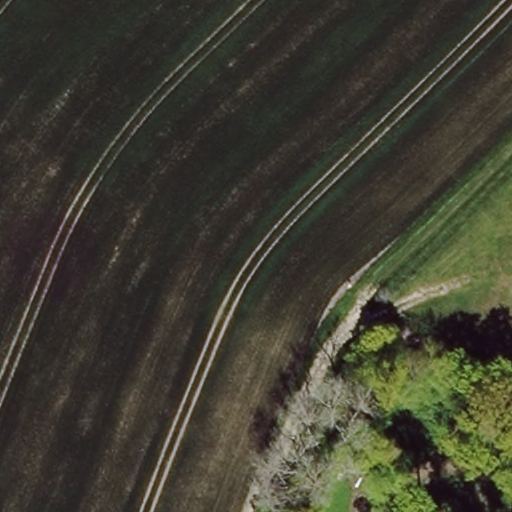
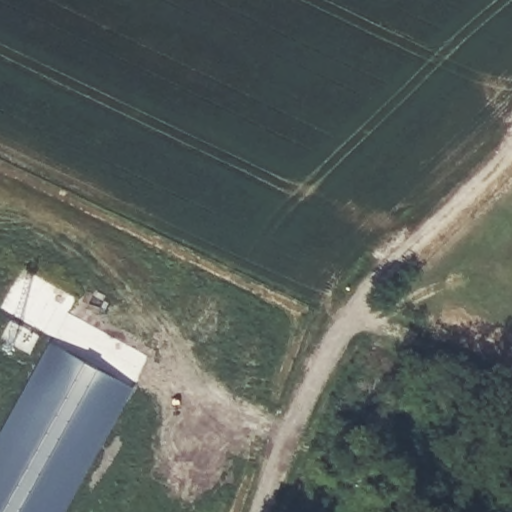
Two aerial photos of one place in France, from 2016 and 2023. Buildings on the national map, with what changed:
new [(0,512),(0,432),(50,341),(135,388),(66,512),(0,512)]

